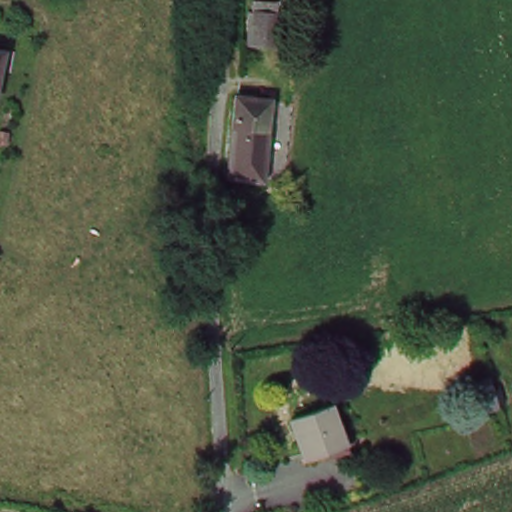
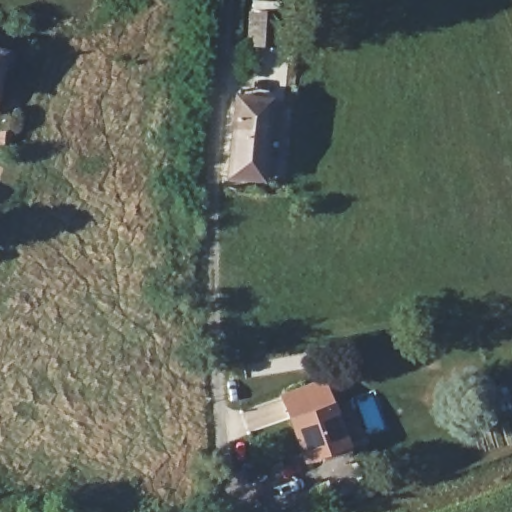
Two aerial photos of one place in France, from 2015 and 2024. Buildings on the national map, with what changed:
unchanged [(282,20),(280,51),(260,50),(261,19),(282,20)]
unchanged [(2,55),(0,65),(0,54),(2,55)]
unchanged [(264,98),(259,174),(228,172),(233,97),(264,98)]
unchanged [(472,422),(466,393),(495,387),(500,417),(472,422)]
unchanged [(305,469),(301,460),(288,419),(327,407),(340,448),(342,456),(305,469)]

